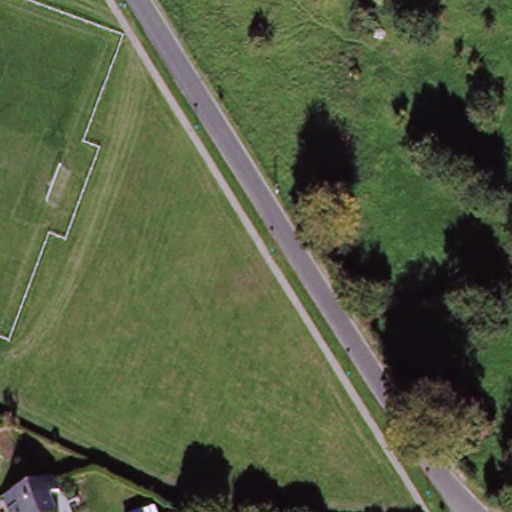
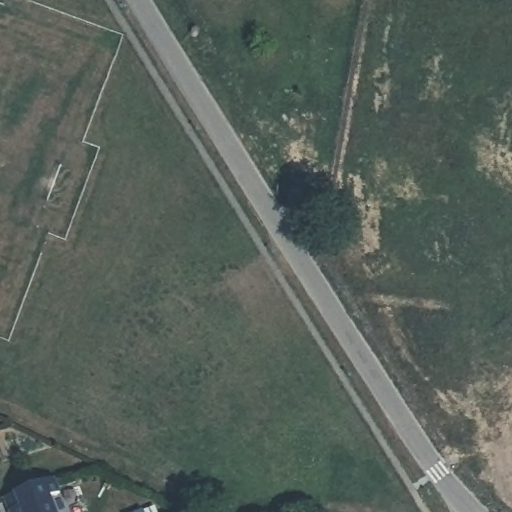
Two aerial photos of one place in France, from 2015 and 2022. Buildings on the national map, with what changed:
unchanged [(50,499),(55,512),(18,512),(12,498),(50,482),(57,496),(50,499)]

